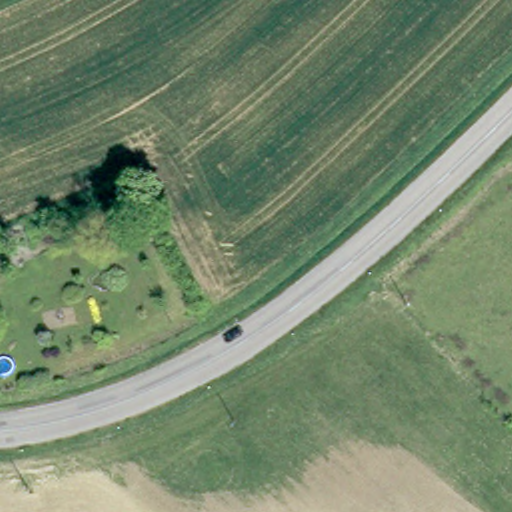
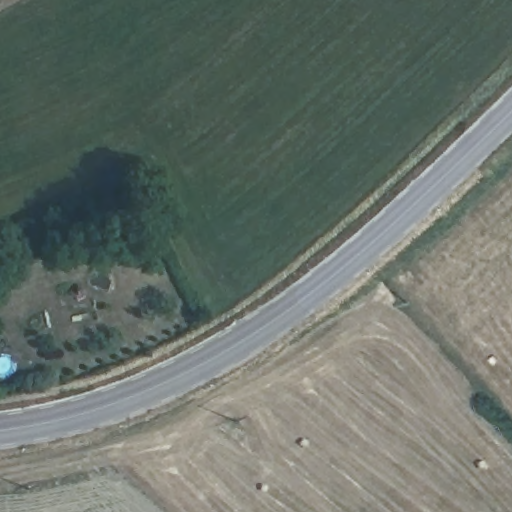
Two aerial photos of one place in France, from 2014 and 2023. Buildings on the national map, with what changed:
[]

